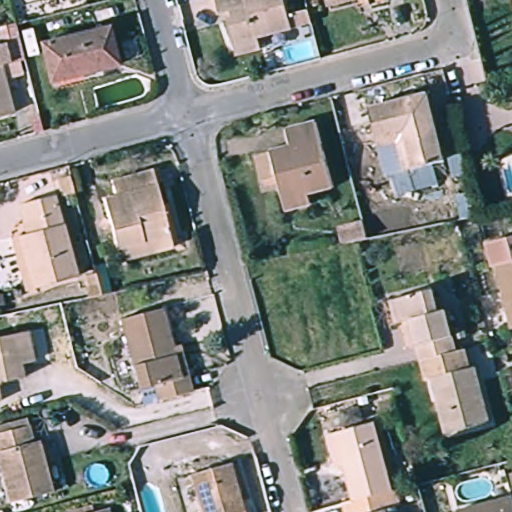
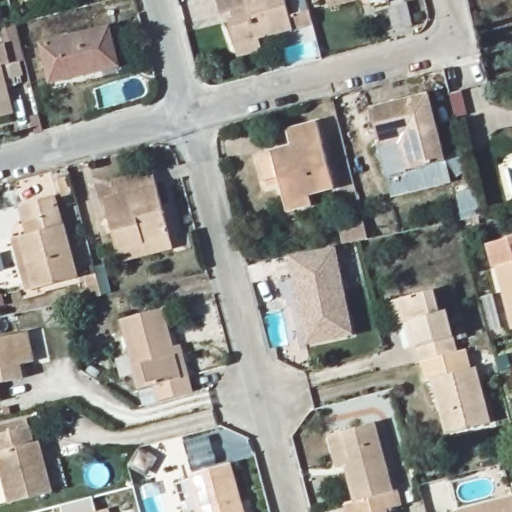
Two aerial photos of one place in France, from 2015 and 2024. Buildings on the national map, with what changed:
unchanged [(280,34),(281,46),(241,55),(232,23),(240,20),(238,11),(218,16),(214,0),(287,0),(294,29),(280,34)]
new [(12,73),(6,51),(3,52),(0,43),(0,33),(16,29),(26,65),(21,66),(25,79),(15,82),(17,90),(8,93),(5,84),(3,75),(12,73)]
unchanged [(98,31),(108,76),(57,89),(43,45),(98,31)]
unchanged [(13,118),(0,121),(0,72),(13,118)]
unchanged [(430,96),(448,165),(409,172),(403,141),(381,146),(375,109),(430,96)]
unchanged [(290,235),(285,217),(276,188),(258,192),(253,169),(294,159),(292,146),(336,135),(351,198),(311,211),(314,228),(290,235)]
unchanged [(120,255),(108,210),(123,206),(118,193),(156,182),(171,236),(120,255)]
unchanged [(60,197),(81,275),(40,289),(26,239),(39,236),(30,206),(60,197)]
unchanged [(177,257),(126,273),(120,255),(171,236),(177,257)]
new [(306,336),(291,262),(337,253),(355,341),(329,347),(309,351),(306,336)]
unchanged [(501,268),(512,265),(512,321),(501,268)]
unchanged [(423,351),(415,352),(404,305),(438,298),(445,320),(451,319),(462,358),(430,367),(427,367),(423,351)]
unchanged [(163,397),(158,382),(143,387),(126,328),(168,317),(183,376),(193,374),(198,390),(163,397)]
unchanged [(45,358),(33,362),(34,372),(3,378),(5,399),(0,400),(0,340),(40,330),(45,358)]
unchanged [(471,378),(476,377),(491,428),(448,440),(430,367),(462,358),(464,357),(471,378)]
unchanged [(30,455),(40,453),(53,501),(11,511),(0,462),(0,444),(25,438),(30,455)]
unchanged [(360,511),(351,482),(343,482),(334,453),(375,443),(396,512),(358,512),(360,511)]
unchanged [(193,479),(234,469),(245,512),(202,512),(193,479)]
unchanged [(460,511),(512,499),(512,512),(460,512),(460,511)]

